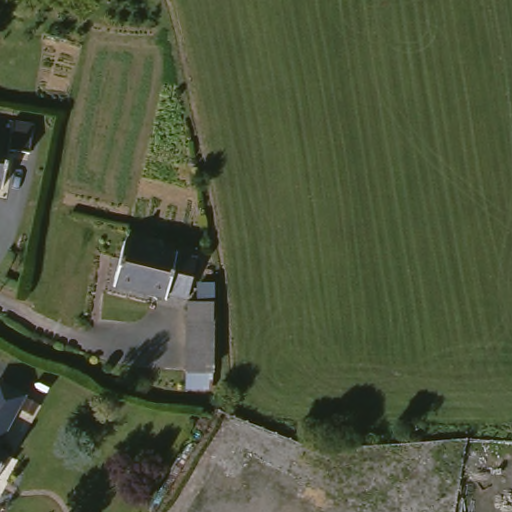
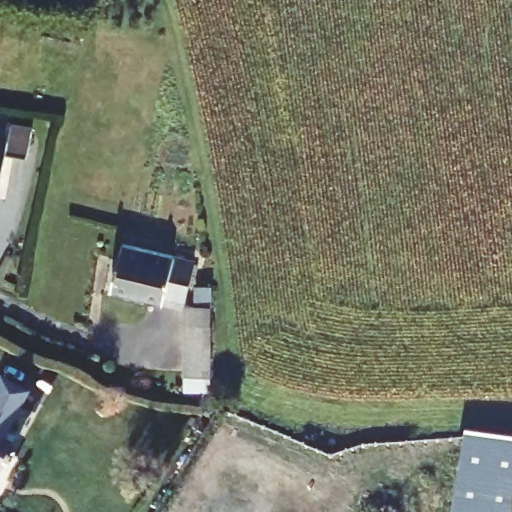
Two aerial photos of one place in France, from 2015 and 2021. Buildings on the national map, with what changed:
unchanged [(14,158),(13,196),(0,196),(0,139),(10,139),(11,126),(39,127),(38,158),(14,158)]
unchanged [(189,303),(169,299),(169,304),(115,293),(121,247),(198,261),(189,303)]
unchanged [(215,306),(210,372),(188,370),(193,305),(215,306)]
unchanged [(0,453),(0,398),(5,390),(29,404),(0,453)]
new [(469,425),(512,433),(512,512),(455,512),(469,425)]
unchanged [(0,479),(0,456),(9,462),(0,479)]

